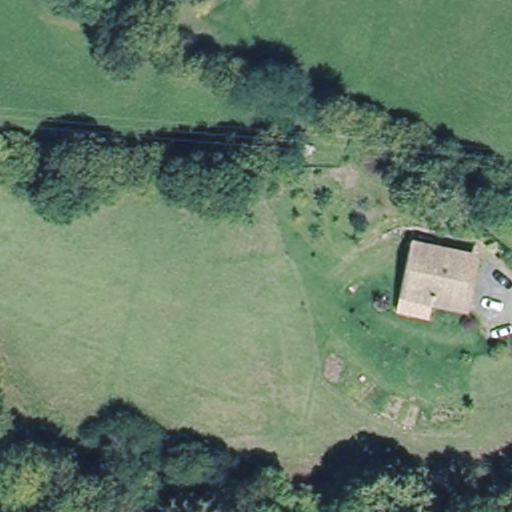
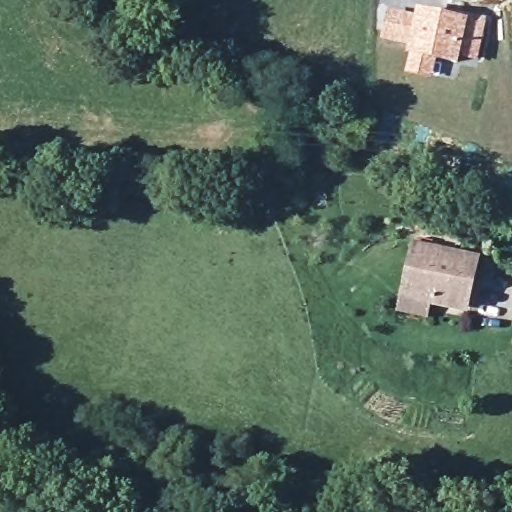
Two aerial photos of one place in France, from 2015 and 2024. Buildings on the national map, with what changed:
new [(381,41),(387,10),(415,14),(416,8),(469,14),(487,16),(478,62),(461,60),(460,64),(436,60),(432,77),(405,73),(409,46),(381,41)]
unchanged [(468,285),(474,286),(469,306),(431,297),(432,291),(407,285),(417,241),(481,256),(477,274),(471,272),(468,285)]

